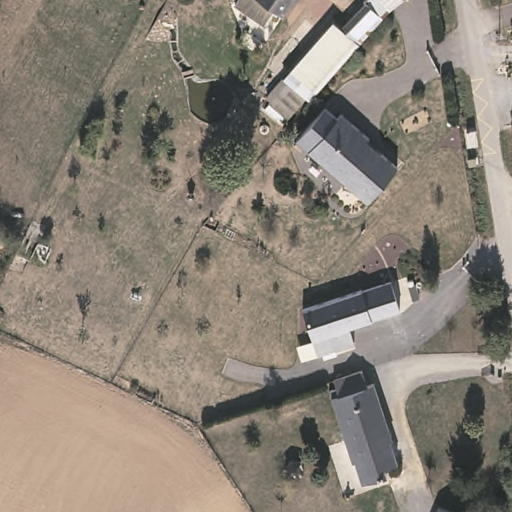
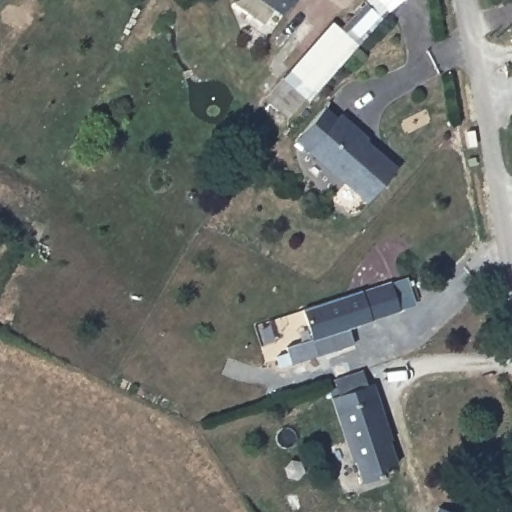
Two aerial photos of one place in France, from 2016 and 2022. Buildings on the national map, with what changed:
unchanged [(274,9),(264,23),(234,1),(235,0),(294,0),(283,15),(274,9)]
unchanged [(410,0),(399,9),(392,0),(410,0)]
unchanged [(387,24),(309,105),(303,100),(287,85),(273,101),(266,95),(334,22),(345,32),(369,6),(374,10),(381,17),(387,24)]
unchanged [(342,125),(346,121),(375,147),(370,152),(383,165),(386,161),(401,175),(370,211),(299,145),(328,113),(342,125)]
unchanged [(355,347),(322,360),(318,346),(313,347),(299,306),(363,285),(364,288),(392,280),(400,308),(398,311),(372,320),(373,321),(349,329),(355,347)]
unchanged [(386,433),(382,435),(390,465),(381,468),(383,474),(356,482),(350,465),(347,466),(335,430),(326,400),(333,397),(329,380),(359,370),(361,377),(365,387),(371,385),(386,433)]
unchanged [(440,507),(453,512),(438,512),(440,507)]

